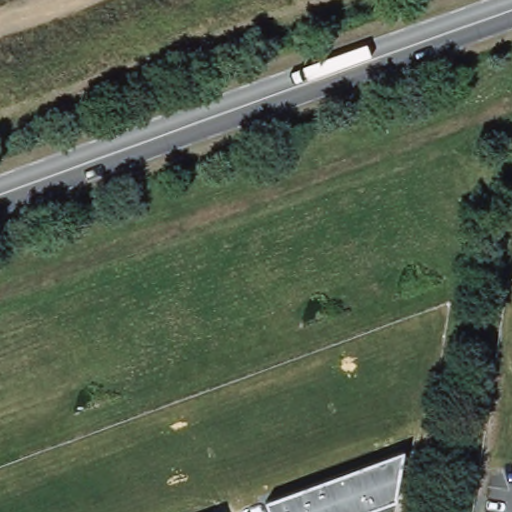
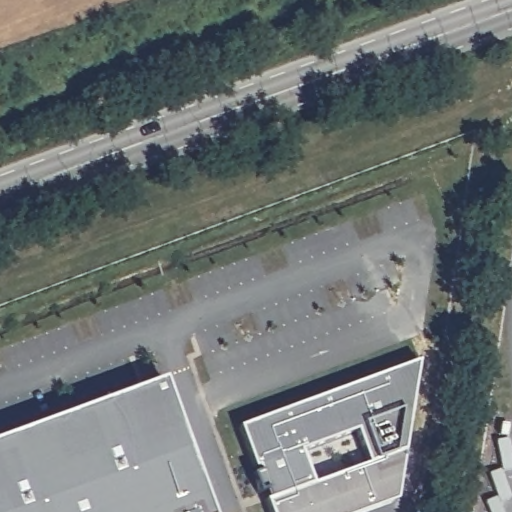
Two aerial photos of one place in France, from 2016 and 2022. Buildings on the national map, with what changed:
new [(266,498),(263,490),(257,492),(250,475),(255,473),(237,426),(417,361),(395,499),(359,512),(270,512),(265,499),(266,498)]
new [(210,512),(0,512),(0,439),(162,380),(210,512)]
demolished [(397,510),(392,512),(269,512),(268,511),(405,461),(397,510)]

